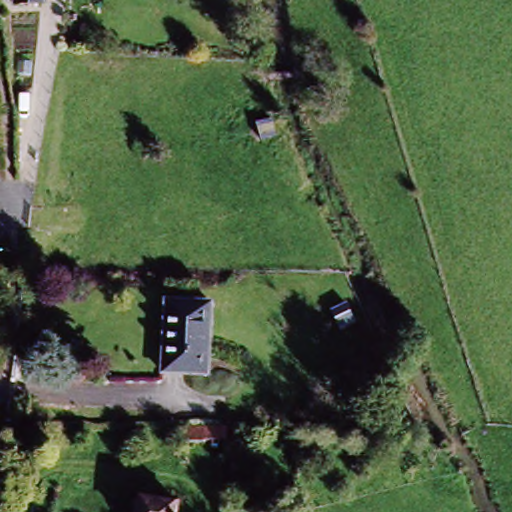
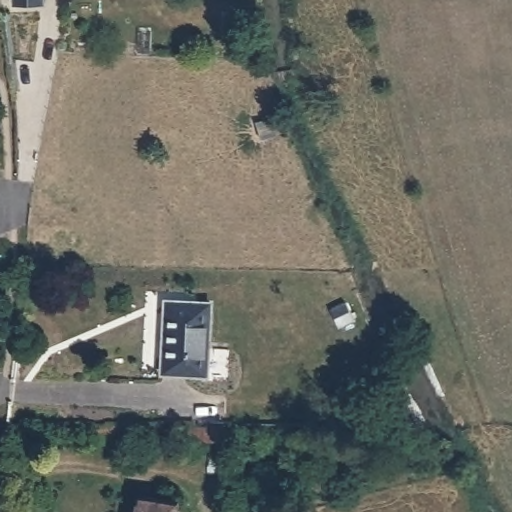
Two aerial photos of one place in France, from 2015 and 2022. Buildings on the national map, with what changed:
unchanged [(38,4),(8,4),(8,0),(38,0),(38,4)]
unchanged [(202,381),(157,379),(161,305),(206,308),(202,381)]
unchanged [(241,441),(185,442),(186,424),(241,424),(241,441)]
unchanged [(132,512),(134,502),(172,509),(171,512),(132,512)]

